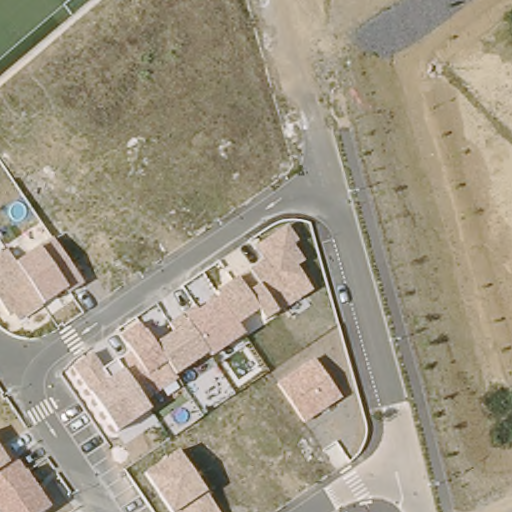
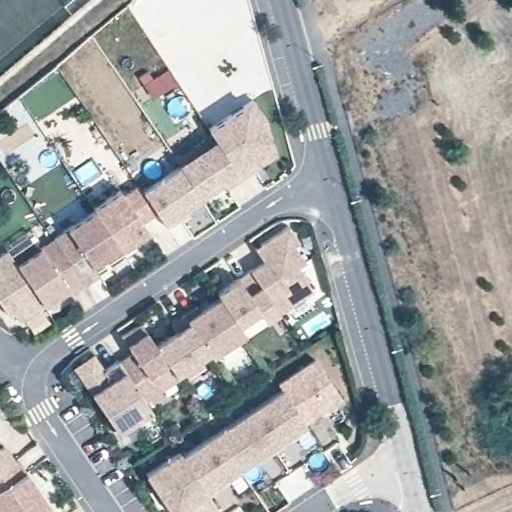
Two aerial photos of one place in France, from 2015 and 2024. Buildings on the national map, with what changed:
new [(162,222),(142,190),(180,165),(178,160),(173,157),(211,133),(208,128),(246,101),(272,141),(233,167),(236,172),(162,222)]
new [(94,209),(93,206),(118,190),(147,231),(120,250),(118,247),(91,266),(97,275),(84,283),(52,240),(94,209)]
unchanged [(279,311),(265,320),(258,311),(237,326),(244,336),(212,357),(207,352),(142,397),(150,410),(117,430),(90,390),(74,368),(94,355),(103,370),(132,353),(124,340),(120,335),(140,323),(144,328),(157,345),(176,331),(171,325),(218,297),(215,292),(238,277),(246,290),(257,284),(248,270),(264,260),(255,246),(287,225),(298,241),(293,245),(303,261),(296,265),(313,291),(279,311)]
unchanged [(66,290),(40,306),(18,321),(12,314),(8,316),(0,304),(0,255),(7,250),(15,262),(40,247),(52,240),(85,283),(66,290)]
unchanged [(303,421),(277,382),(314,358),(341,397),(303,421)]
new [(281,387),(303,421),(305,425),(206,493),(181,455),(281,387)]
unchanged [(0,512),(0,448),(10,463),(18,460),(30,476),(52,507),(45,512),(0,512)]
unchanged [(179,450),(206,493),(219,512),(171,512),(143,473),(179,450)]

